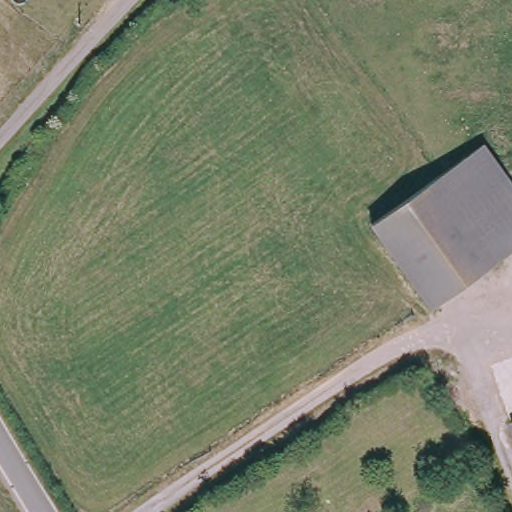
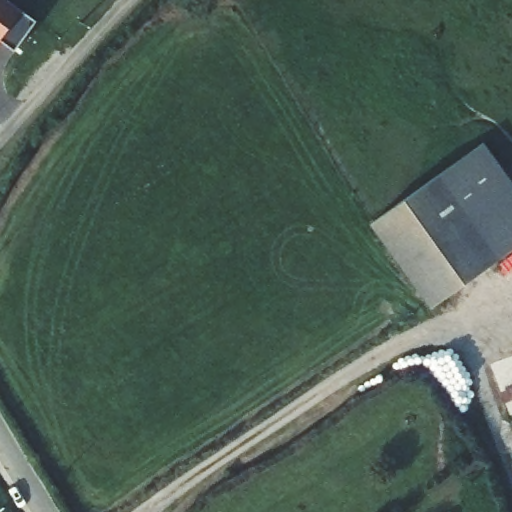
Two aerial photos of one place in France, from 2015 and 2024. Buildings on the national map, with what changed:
new [(15,49),(1,38),(0,39),(0,0),(8,0),(36,21),(15,49)]
unchanged [(478,145),(512,191),(512,246),(447,297),(387,215),(478,145)]
unchanged [(387,215),(447,297),(430,309),(422,300),(368,229),(387,215)]
unchanged [(511,512),(483,434),(512,422),(512,512),(511,512)]

